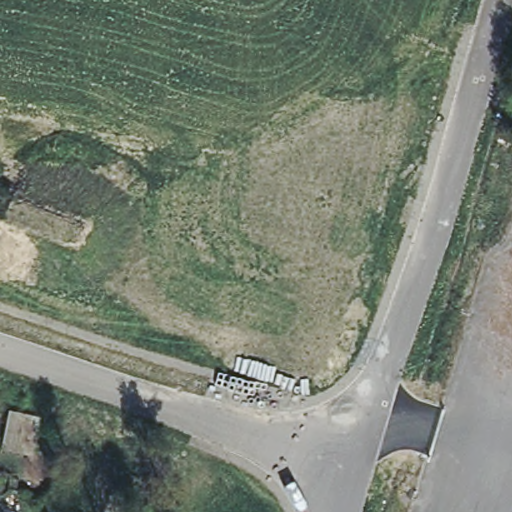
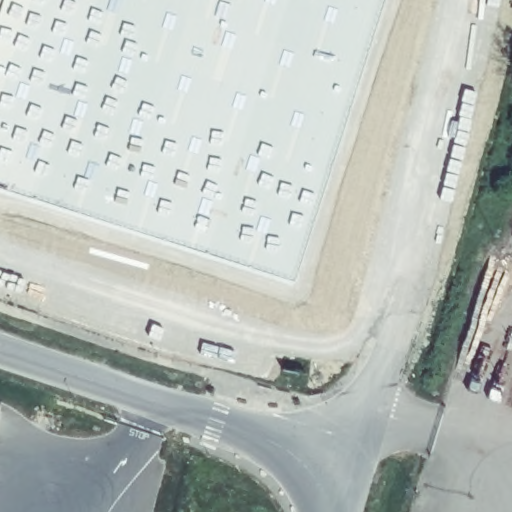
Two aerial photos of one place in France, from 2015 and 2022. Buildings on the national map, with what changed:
new [(0,189),(0,0),(386,0),(295,283),(0,189)]
unchanged [(10,412),(33,417),(25,454),(2,448),(10,412)]

